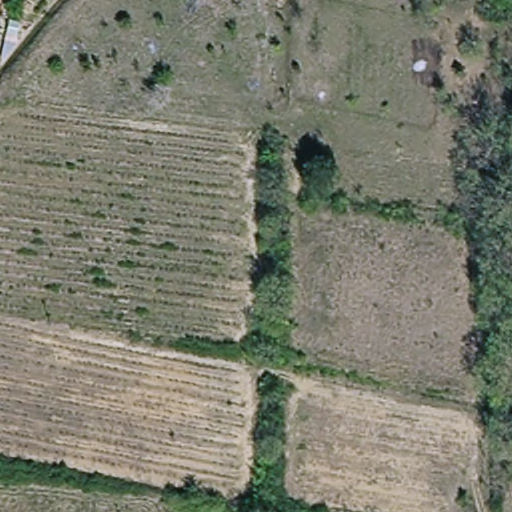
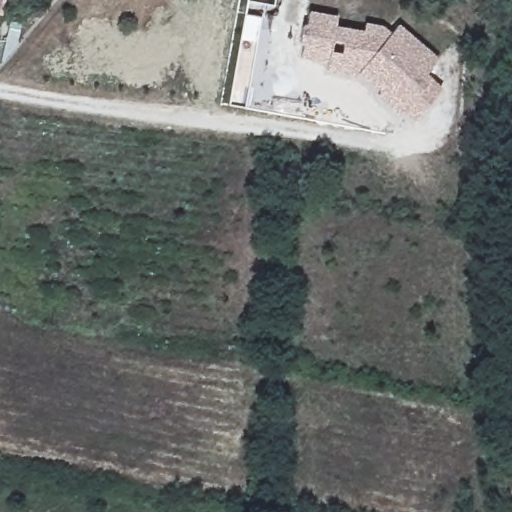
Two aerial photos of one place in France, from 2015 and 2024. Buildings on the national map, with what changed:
unchanged [(3,22),(0,22),(0,4),(7,6),(3,22)]
new [(363,31),(365,23),(382,25),(391,32),(399,24),(440,59),(427,72),(432,78),(443,89),(413,122),(403,112),(398,117),(377,97),(380,92),(360,76),(326,71),(327,62),(300,59),(303,46),(298,45),(302,24),(307,25),(310,12),(338,17),(336,27),(363,31)]

